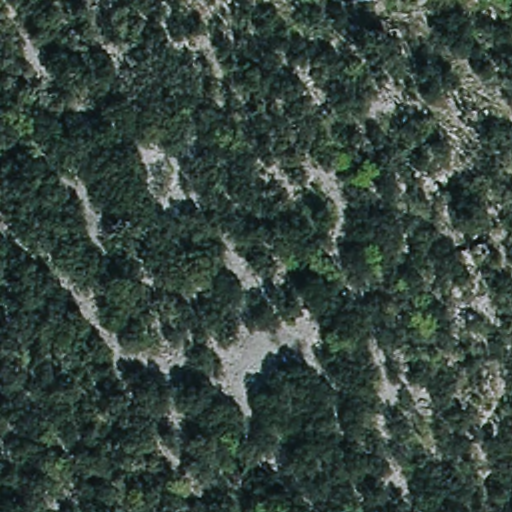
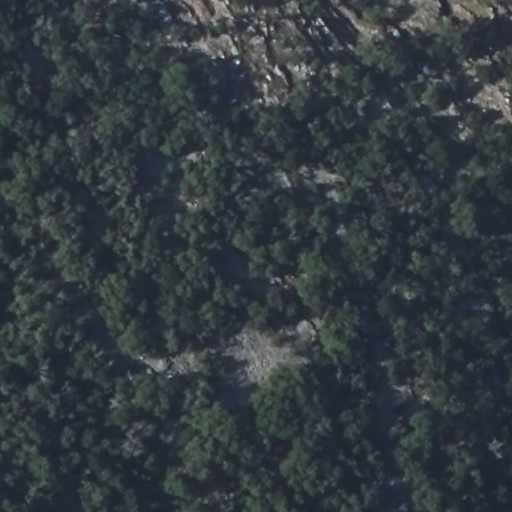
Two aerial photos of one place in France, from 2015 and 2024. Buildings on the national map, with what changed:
[]

